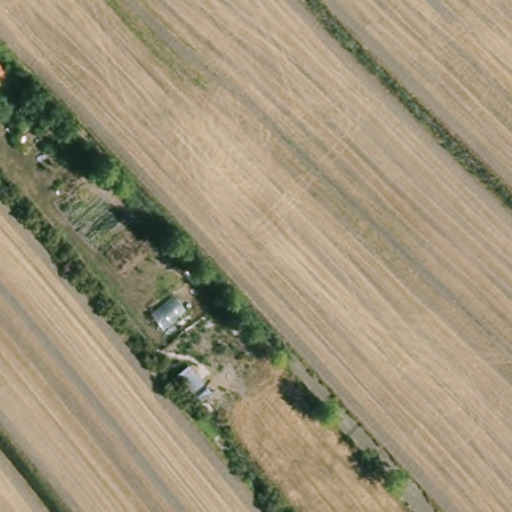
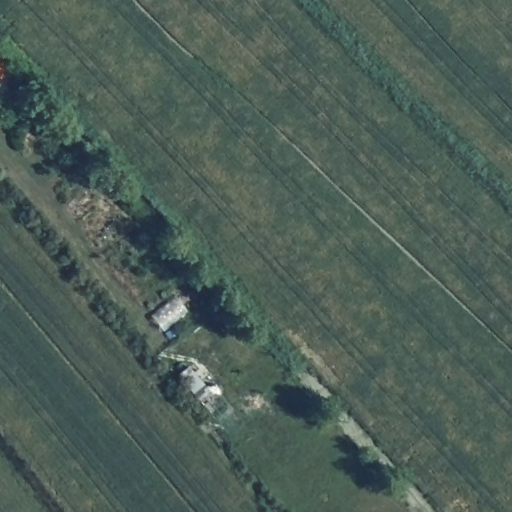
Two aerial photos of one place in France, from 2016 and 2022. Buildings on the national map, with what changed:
unchanged [(7,97),(0,90),(0,71),(16,88),(7,97)]

